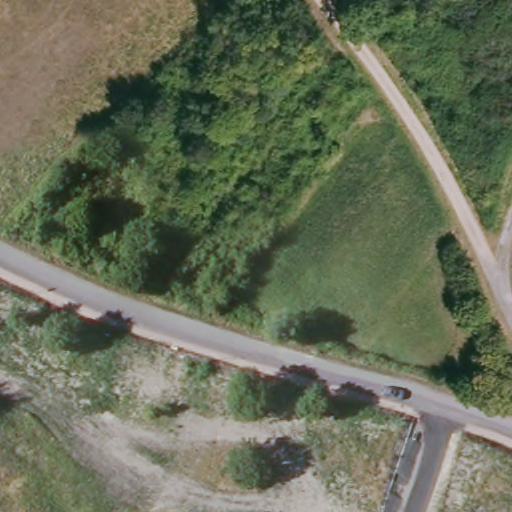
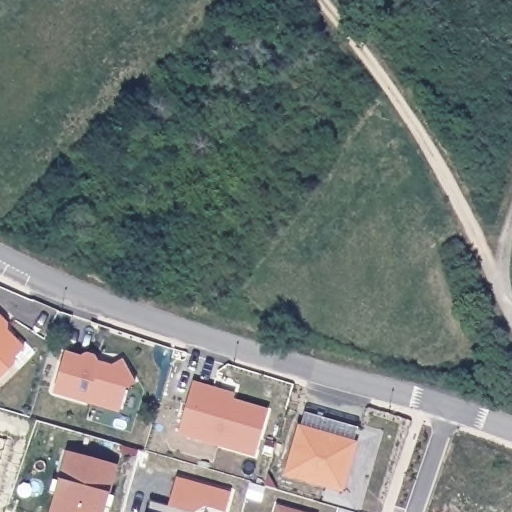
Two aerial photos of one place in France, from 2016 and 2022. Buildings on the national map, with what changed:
new [(6,323),(6,331),(24,348),(15,357),(15,364),(0,379),(0,317),(6,323)]
new [(65,353),(80,357),(86,355),(96,357),(99,363),(112,367),(122,361),(135,383),(126,388),(120,411),(54,392),(65,353)]
new [(193,382),(214,388),(212,395),(268,411),(255,456),(185,435),(189,421),(183,419),(193,382)]
new [(300,428),(356,444),(342,490),(287,474),(300,428)]
new [(68,452),(116,466),(103,512),(51,512),(68,452)]
new [(150,502),(170,507),(178,478),(230,493),(226,512),(205,507),(195,512),(147,512),(150,502)]
new [(278,507),(298,512),(276,512),(278,507)]

